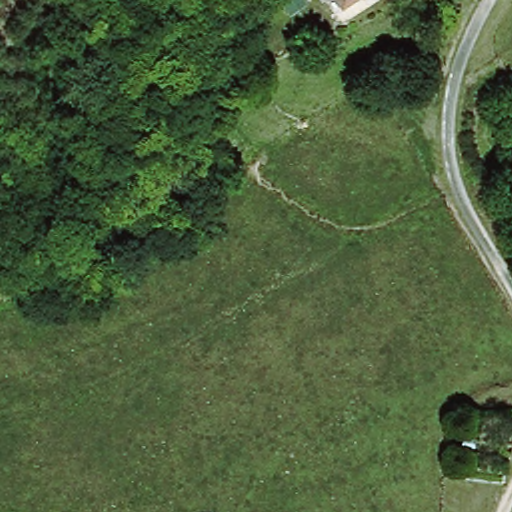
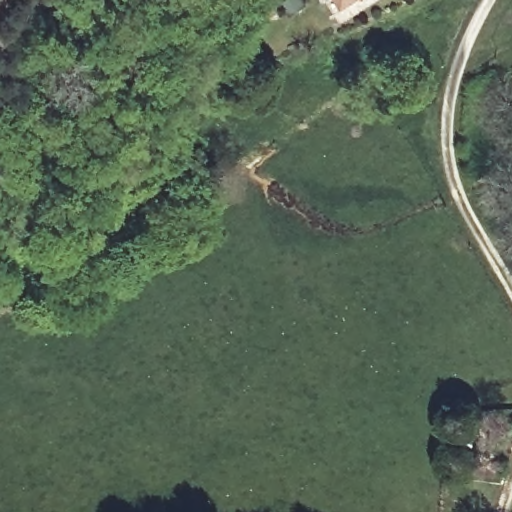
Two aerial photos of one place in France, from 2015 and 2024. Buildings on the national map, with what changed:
unchanged [(338,11),(331,0),(354,0),(338,11)]
unchanged [(468,442),(483,443),(484,451),(468,452),(468,442)]

